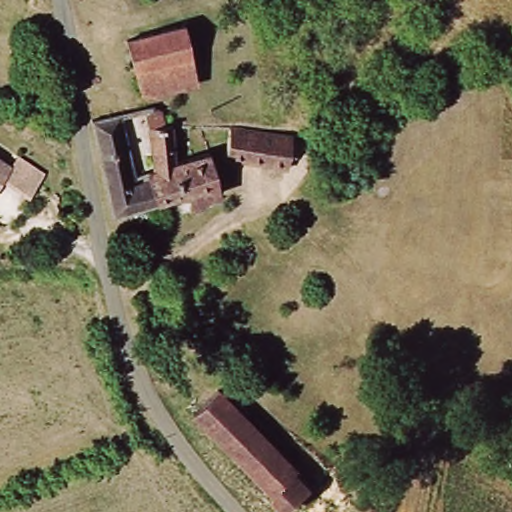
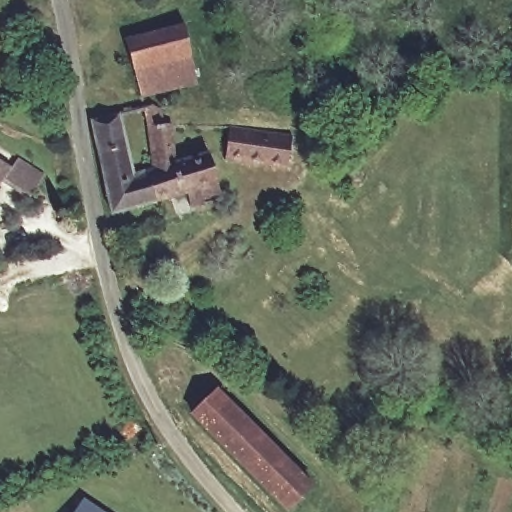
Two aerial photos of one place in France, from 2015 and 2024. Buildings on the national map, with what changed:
unchanged [(203,85),(162,96),(141,90),(125,42),(188,26),(203,85)]
unchanged [(165,124),(171,122),(177,154),(207,146),(219,187),(153,206),(141,164),(155,159),(140,105),(158,99),(165,124)]
unchanged [(141,164),(153,206),(117,215),(89,117),(106,111),(117,109),(132,165),(141,164)]
unchanged [(292,136),(290,174),(223,168),(228,133),(292,136)]
unchanged [(13,167),(20,157),(50,175),(33,202),(2,184),(13,167)]
unchanged [(13,167),(2,184),(0,187),(0,159),(13,167)]
unchanged [(316,479),(295,506),(192,423),(212,395),(316,479)]
new [(75,512),(83,500),(102,512),(75,512)]

